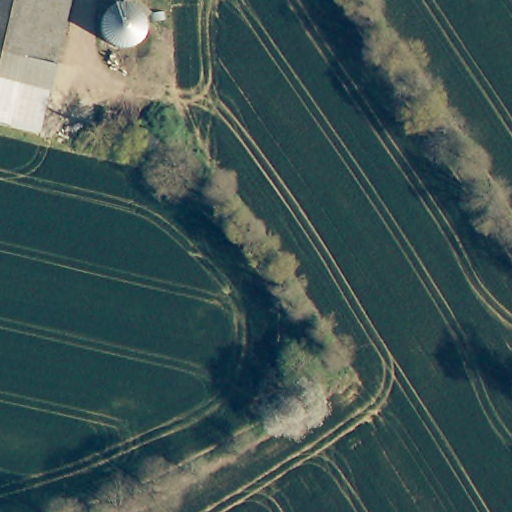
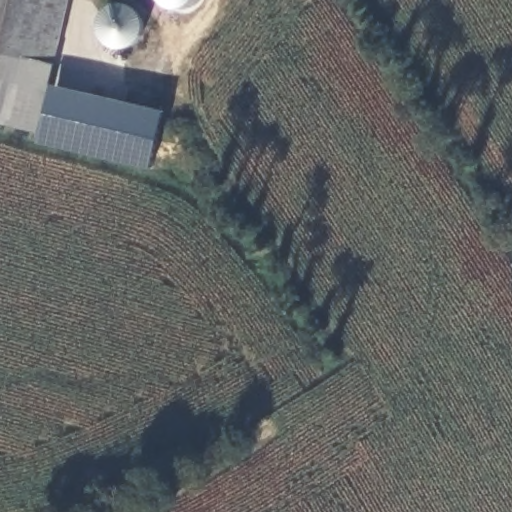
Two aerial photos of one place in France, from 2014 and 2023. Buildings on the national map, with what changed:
unchanged [(38,133),(0,124),(0,0),(69,0),(38,133)]
unchanged [(125,4),(136,8),(142,17),(145,27),(142,36),(135,45),(125,48),(114,47),(104,41),(99,32),(101,21),(104,13),(116,5),(125,4)]
new [(50,84),(164,111),(150,168),(39,143),(41,134),(38,133),(50,84)]

